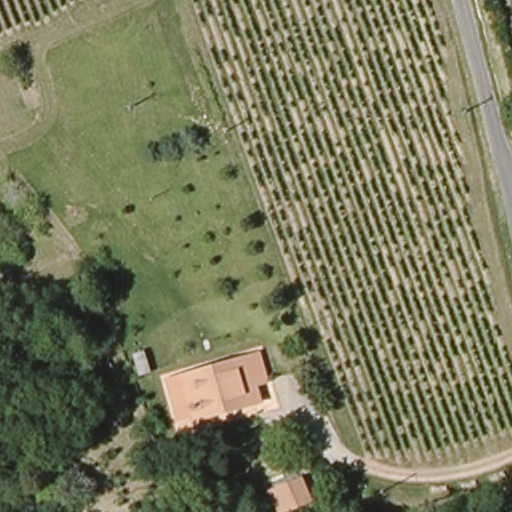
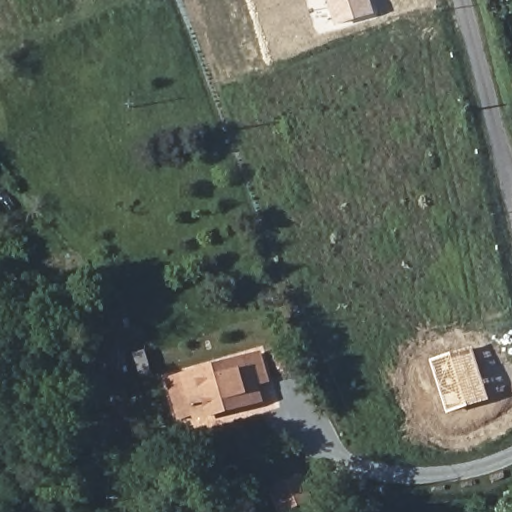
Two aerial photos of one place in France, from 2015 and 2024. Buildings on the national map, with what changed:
new [(326,0),(371,0),(375,14),(334,26),(326,0)]
new [(428,362),(472,347),(490,401),(446,415),(428,362)]
unchanged [(282,382),(267,385),(270,401),(209,416),(207,408),(190,411),(183,376),(276,354),(282,382)]
unchanged [(332,491),(325,473),(342,467),(348,486),(332,491)]

